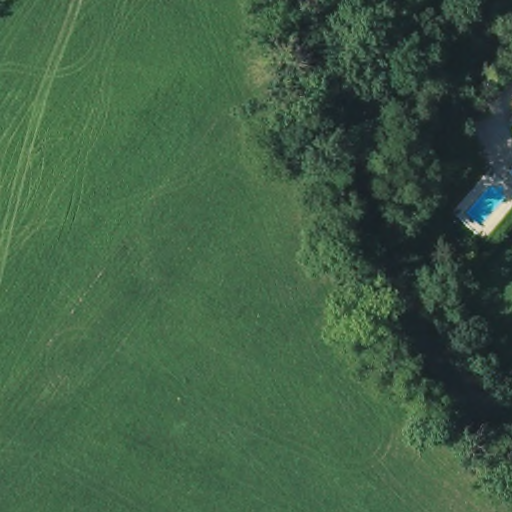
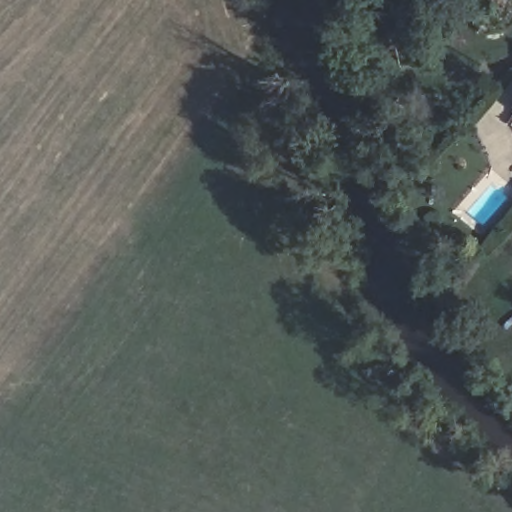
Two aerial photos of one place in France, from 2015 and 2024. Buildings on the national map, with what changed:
[]

